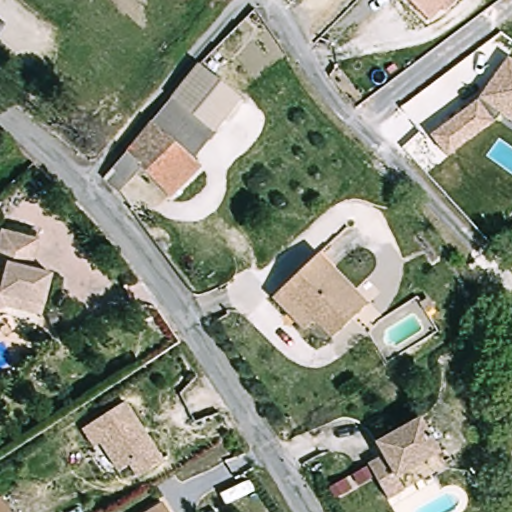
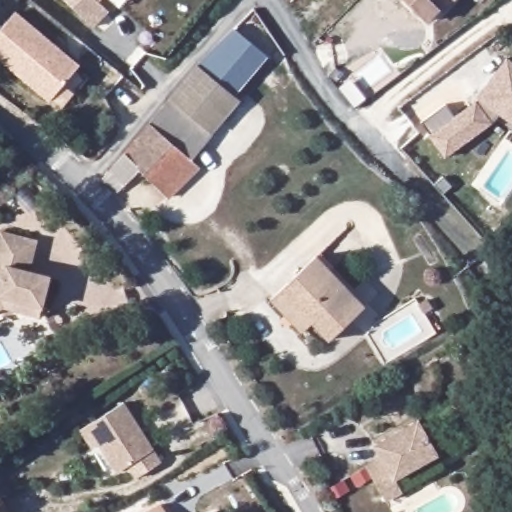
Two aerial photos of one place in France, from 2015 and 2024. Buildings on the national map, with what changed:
new [(108,11),(93,28),(64,0),(100,0),(98,1),(108,11)]
unchanged [(438,10),(425,24),(400,0),(454,0),(442,14),(438,10)]
new [(80,64),(48,101),(0,61),(0,30),(15,11),(80,64)]
new [(233,28),(268,56),(236,94),(199,64),(233,28)]
unchanged [(499,115),(445,155),(430,136),(478,99),(508,58),(512,61),(512,124),(499,115)]
unchanged [(152,120),(199,64),(240,99),(211,133),(212,134),(190,159),(149,123),(152,120)]
unchanged [(101,178),(149,123),(190,159),(197,165),(167,197),(138,169),(116,193),(101,178)]
unchanged [(0,308),(0,229),(33,235),(27,267),(48,270),(41,301),(39,309),(8,304),(0,308)]
unchanged [(511,230),(512,229),(512,233),(511,230)]
unchanged [(270,300),(283,289),(318,258),(365,310),(329,342),(313,322),(301,333),(270,300)]
unchanged [(161,464),(136,480),(127,467),(117,474),(98,447),(92,451),(80,433),(86,429),(123,405),(161,464)]
unchanged [(348,476),(364,468),(379,459),(371,446),(418,421),(438,457),(395,480),(402,495),(384,504),(371,481),(354,489),(348,476)]
unchanged [(340,480),(347,493),(331,502),(324,489),(340,480)]
unchanged [(11,512),(0,512),(0,498),(1,498),(11,512)]
unchanged [(160,501),(167,512),(141,512),(160,501)]

